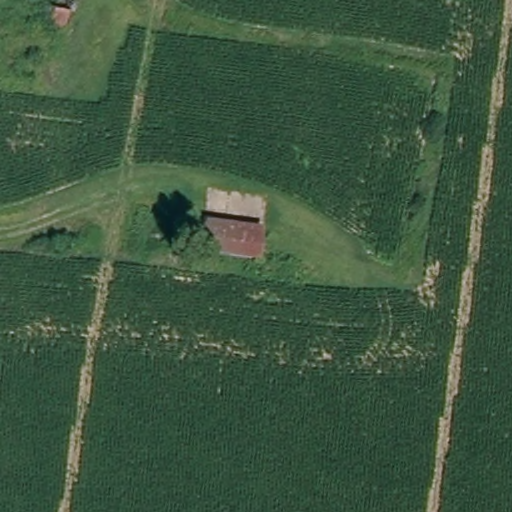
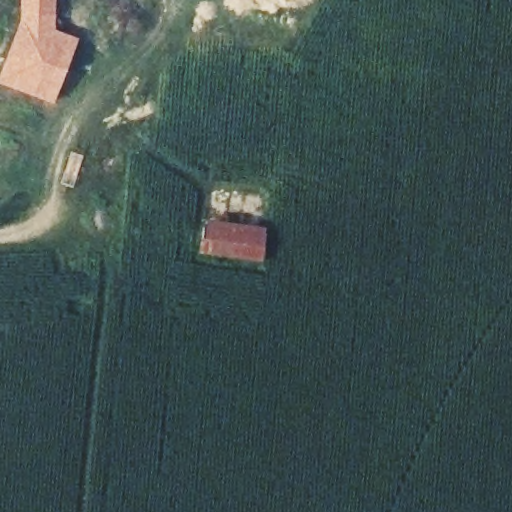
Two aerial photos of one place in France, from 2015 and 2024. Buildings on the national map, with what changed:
new [(18,21),(19,0),(56,0),(55,30),(80,39),(54,105),(0,85),(0,72),(18,21)]
demolished [(52,25),(58,8),(34,0),(82,0),(69,30),(52,25)]
unchanged [(202,222),(261,231),(258,255),(200,246),(202,222)]

